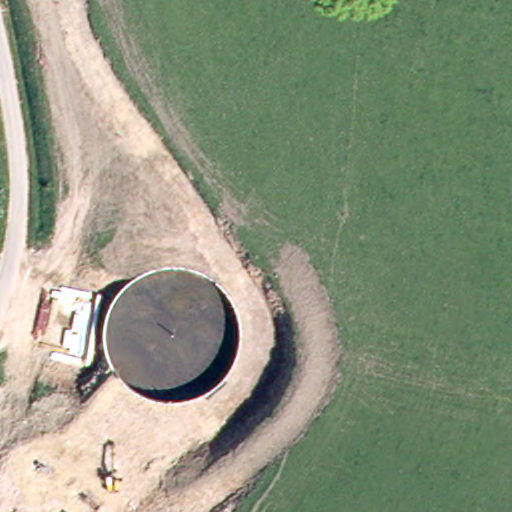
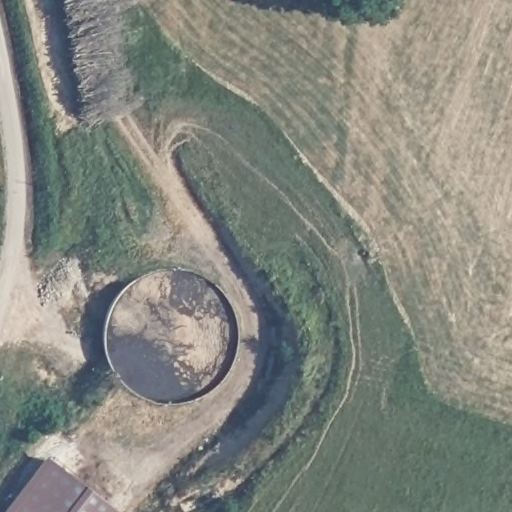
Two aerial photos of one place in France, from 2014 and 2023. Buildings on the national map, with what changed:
new [(46,455),(121,512),(1,512),(46,455)]

